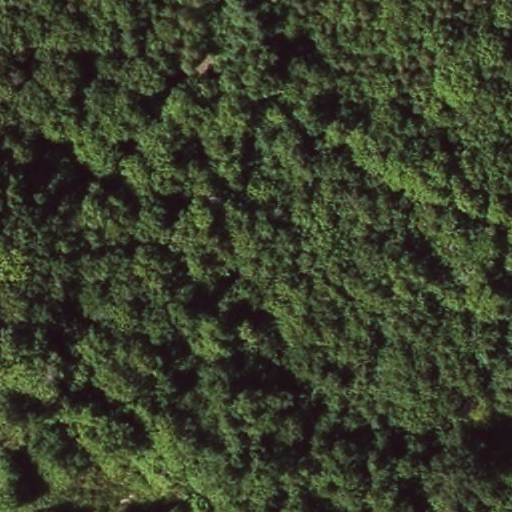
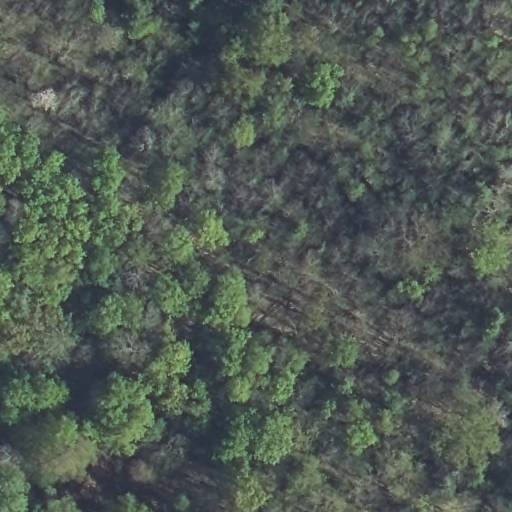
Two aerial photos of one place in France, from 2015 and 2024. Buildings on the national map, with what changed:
[]

